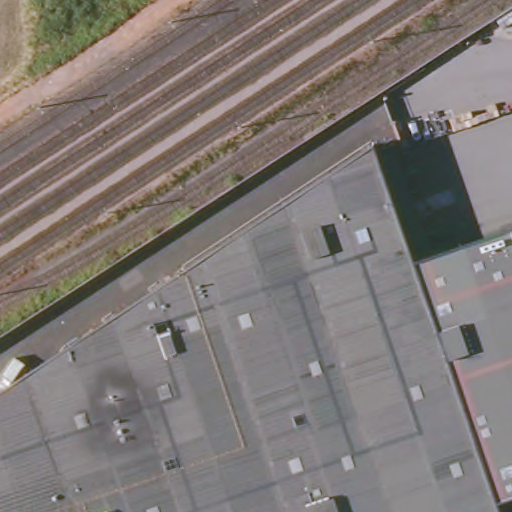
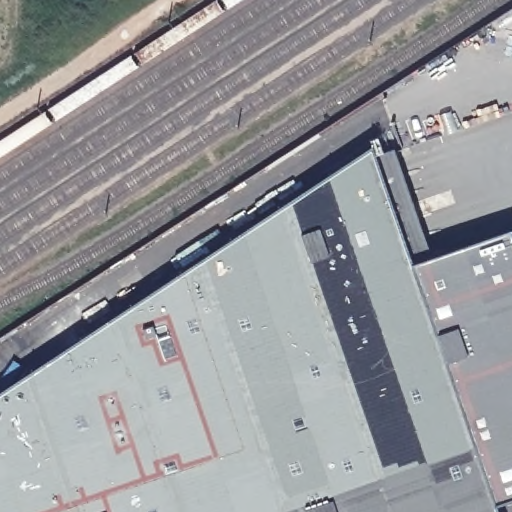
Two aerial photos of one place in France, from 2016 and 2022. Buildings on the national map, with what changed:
unchanged [(67,347),(372,145),(377,158),(420,283),(427,302),(475,443),(482,462),(499,512),(0,512),(0,391),(15,381),(67,347)]
unchanged [(482,462),(475,443),(427,302),(420,283),(377,158),(376,155),(395,148),(432,258),(510,230),(512,235),(512,498),(496,503),(482,462)]

